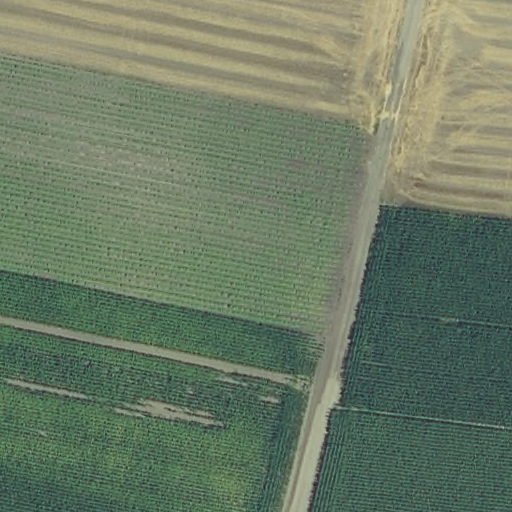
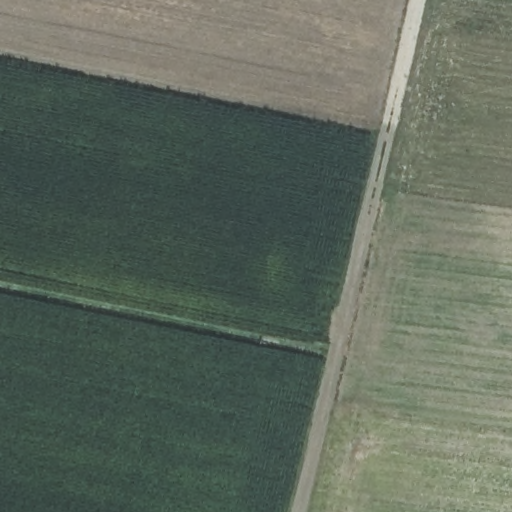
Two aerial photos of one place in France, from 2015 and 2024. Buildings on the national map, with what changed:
[]

